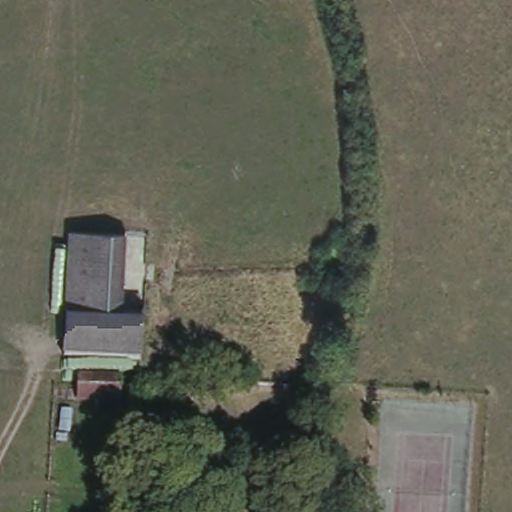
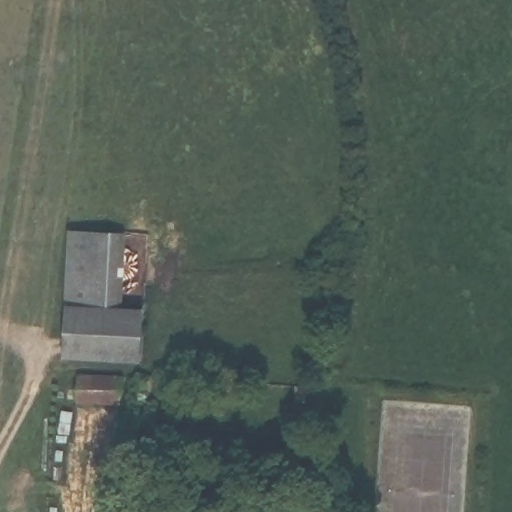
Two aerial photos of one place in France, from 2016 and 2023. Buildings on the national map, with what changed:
unchanged [(111,311),(138,311),(139,354),(62,352),(68,235),(114,237),(111,311)]
unchanged [(143,238),(138,311),(111,311),(114,237),(143,238)]
unchanged [(147,388),(132,389),(136,366),(151,367),(147,388)]
unchanged [(119,398),(78,398),(77,374),(118,374),(119,398)]

